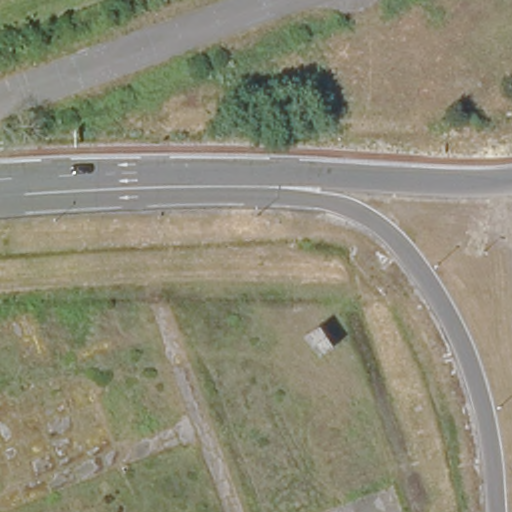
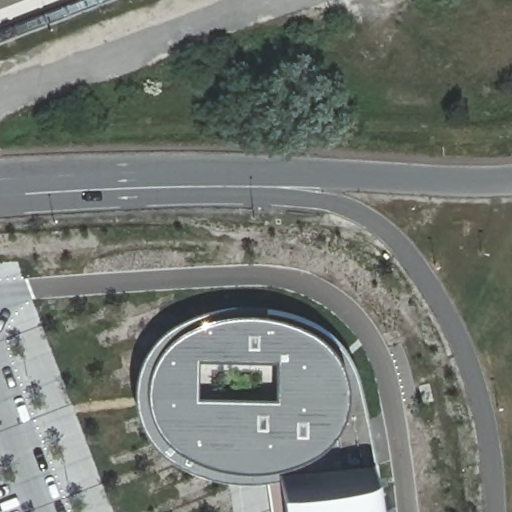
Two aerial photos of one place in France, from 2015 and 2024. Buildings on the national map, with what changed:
new [(314,329),(332,343),(345,361),(356,395),(370,449),(377,493),(378,512),(276,512),(274,484),(263,485),(221,485),(179,471),(159,455),(138,430),(133,397),(138,361),(168,330),(191,319),(230,315),(266,316),(287,318),(314,329)]

